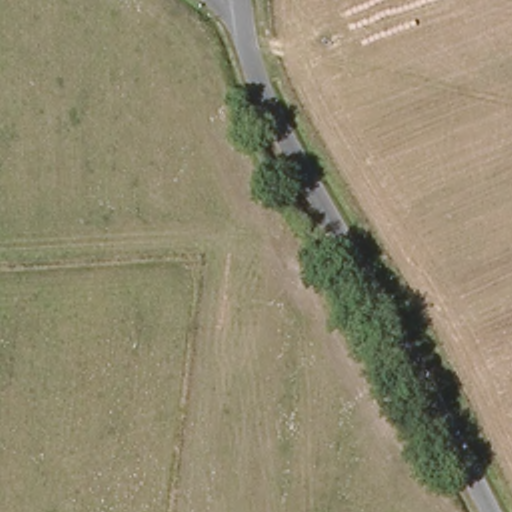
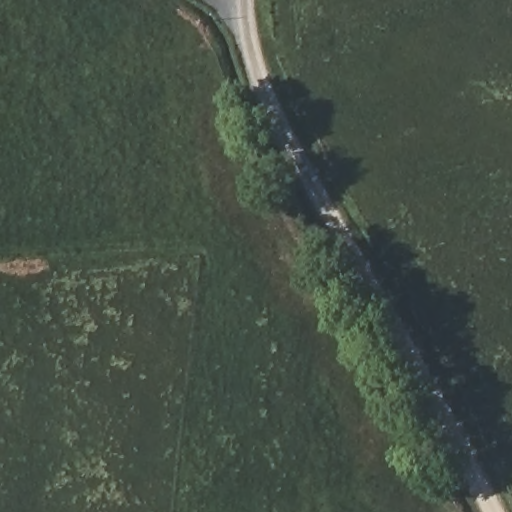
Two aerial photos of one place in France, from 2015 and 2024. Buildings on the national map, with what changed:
[]

